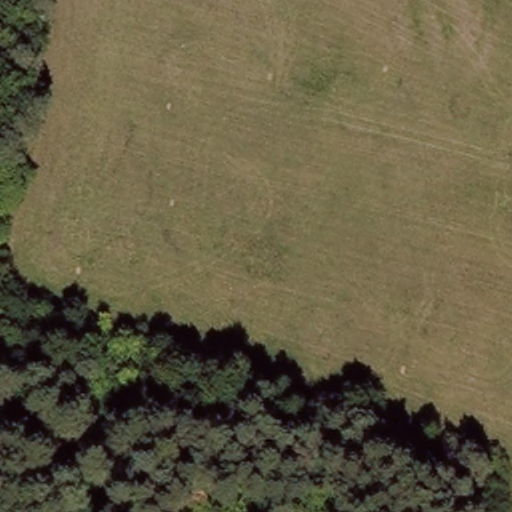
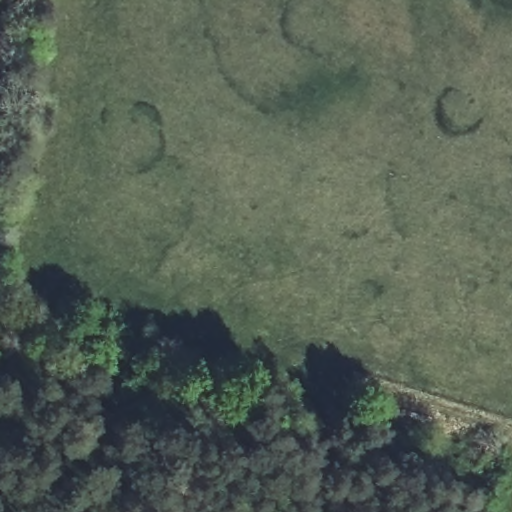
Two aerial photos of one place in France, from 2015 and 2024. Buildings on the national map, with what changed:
[]

